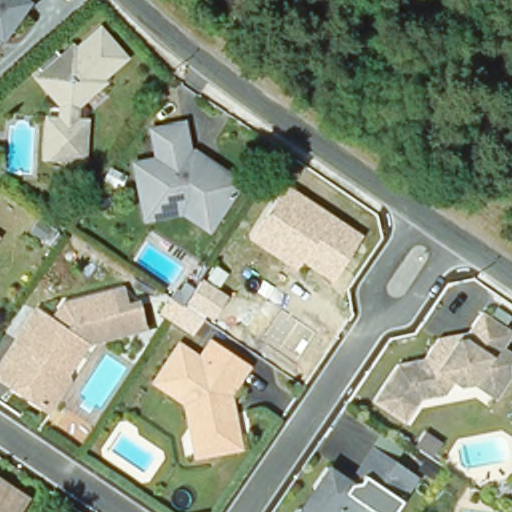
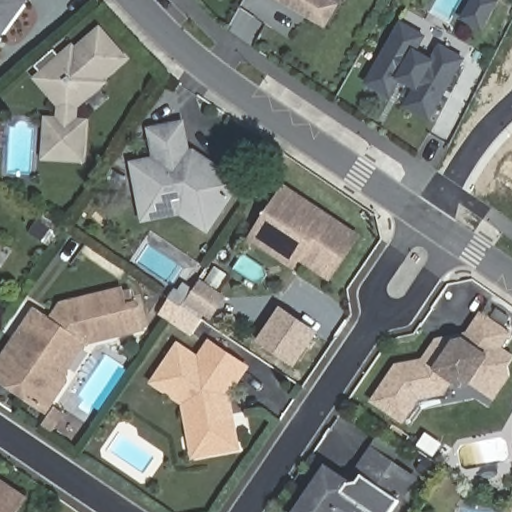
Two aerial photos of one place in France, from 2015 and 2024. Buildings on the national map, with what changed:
unchanged [(28,0),(29,1),(0,41),(0,0),(28,0)]
new [(315,16),(288,0),(332,0),(337,3),(326,22),(315,16)]
new [(401,21),(424,34),(416,49),(432,58),(441,43),(464,56),(430,116),(407,103),(417,85),(400,75),(390,94),(367,81),(401,21)]
unchanged [(54,49),(64,60),(100,29),(126,59),(98,83),(100,86),(77,107),(76,122),(86,122),(83,161),(44,157),(48,120),(60,121),(61,105),(40,81),(45,77),(35,66),(54,49)]
unchanged [(134,164),(157,159),(162,152),(154,147),(151,130),(183,122),(189,152),(194,152),(196,159),(204,165),(211,163),(240,184),(219,215),(195,197),(142,207),(134,164)]
unchanged [(294,266),(271,251),(252,238),(284,189),(357,237),(330,278),(306,262),(300,257),(294,266)]
unchanged [(142,207),(195,197),(219,215),(207,231),(182,212),(145,220),(142,207)]
unchanged [(203,320),(193,333),(172,319),(161,312),(170,297),(175,290),(179,292),(184,283),(192,289),(191,292),(182,305),(190,311),(203,320)]
unchanged [(67,379),(47,409),(36,402),(0,378),(0,363),(17,337),(37,307),(45,313),(53,318),(63,303),(121,288),(126,306),(138,302),(144,327),(87,342),(66,372),(67,379)]
new [(281,310),(315,333),(295,363),(261,340),(281,310)]
unchanged [(459,386),(453,382),(444,395),(419,399),(404,422),(372,401),(397,365),(424,360),(438,340),(443,343),(456,341),(459,336),(465,339),(482,313),(512,333),(502,348),(512,354),(512,361),(509,366),(511,376),(495,399),(472,383),(459,386)]
unchanged [(189,432),(184,407),(154,387),(179,350),(199,364),(210,347),(213,350),(247,372),(227,398),(228,401),(231,418),(238,452),(206,458),(195,461),(189,432)]
unchanged [(298,510),(313,488),(327,467),(350,482),(372,449),(394,463),(415,478),(392,512),(297,512),(298,510)]
unchanged [(30,493),(27,497),(18,512),(0,512),(0,474),(30,493)]

